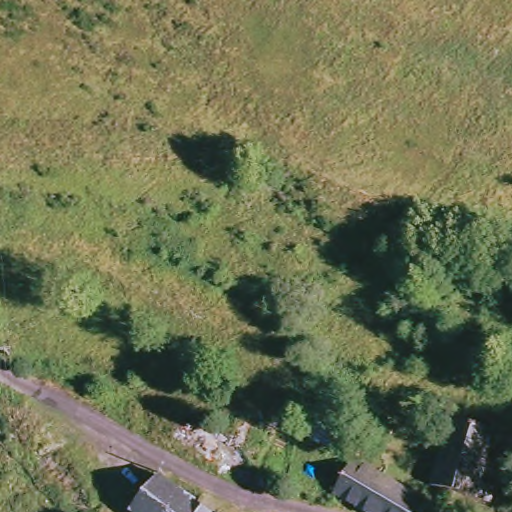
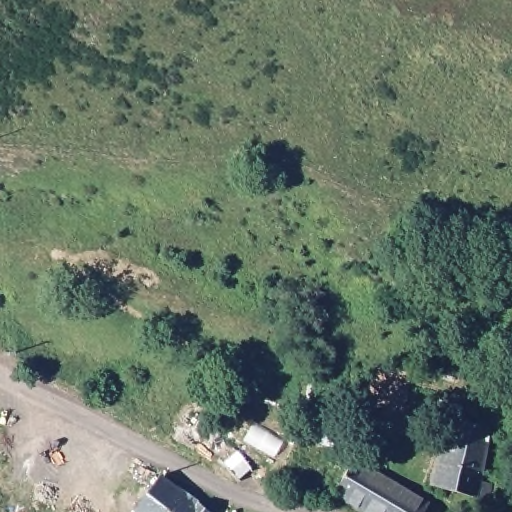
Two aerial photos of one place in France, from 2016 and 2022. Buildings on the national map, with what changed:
unchanged [(455,422),(498,433),(483,498),(440,484),(455,422)]
unchanged [(335,489),(354,457),(412,494),(428,502),(422,512),(368,512),(335,489)]
unchanged [(165,479),(207,512),(139,512),(165,479)]

